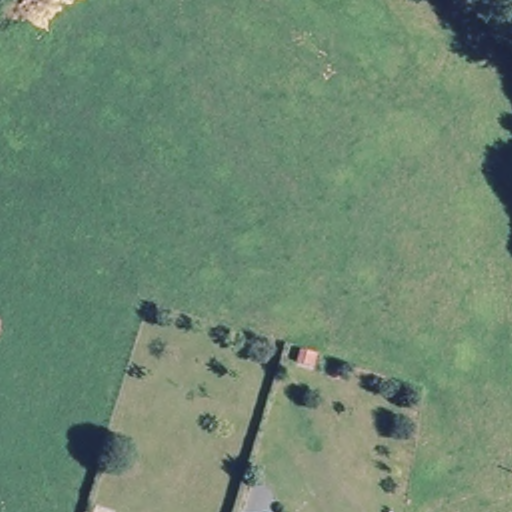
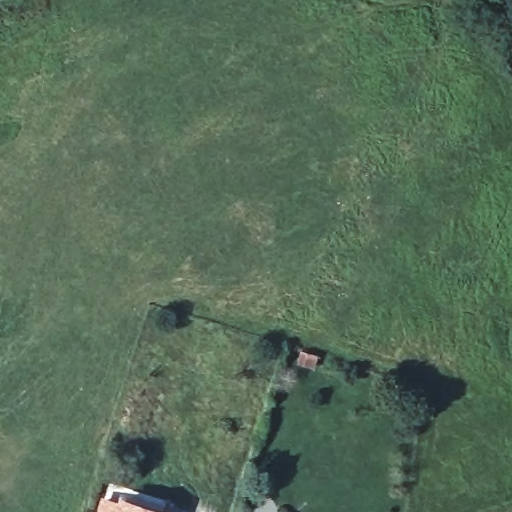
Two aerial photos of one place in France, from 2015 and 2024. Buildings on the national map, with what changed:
new [(114,499),(117,492),(169,510),(169,512),(95,512),(100,495),(114,499)]

